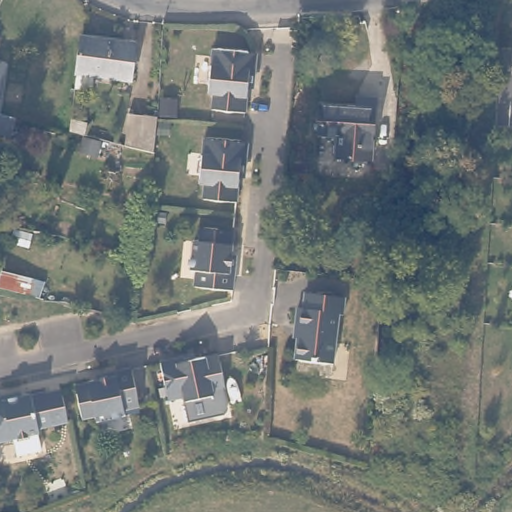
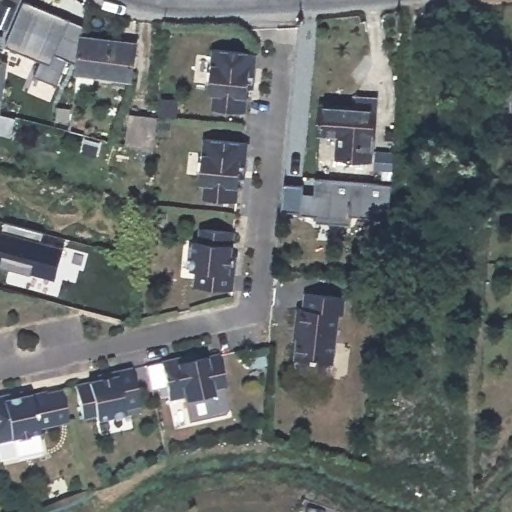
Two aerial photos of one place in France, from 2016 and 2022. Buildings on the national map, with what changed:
new [(81,35),(78,64),(67,59),(57,85),(34,75),(40,60),(4,46),(22,0),(83,24),(81,35)]
unchanged [(136,43),(132,81),(94,76),(92,90),(74,89),(81,35),(136,43)]
unchanged [(255,53),(252,80),(247,80),(244,113),(212,110),(214,94),(210,92),(214,49),(255,53)]
unchanged [(5,64),(0,109),(0,61),(5,64)]
unchanged [(377,97),(372,161),(335,160),(336,138),(316,136),(319,103),(356,105),(356,96),(377,97)]
unchanged [(17,118),(12,134),(0,131),(0,114),(5,115),(17,118)]
unchanged [(157,118),(154,152),(125,145),(128,114),(157,118)]
unchanged [(85,124),(83,134),(68,130),(70,120),(85,124)]
unchanged [(247,141),(244,169),(239,169),(236,201),(205,199),(206,182),(203,180),(207,138),(247,141)]
unchanged [(448,175),(442,215),(425,216),(425,207),(421,207),(421,202),(419,200),(420,175),(431,175),(432,172),(448,175)]
new [(392,181),(389,217),(352,214),(351,222),(317,221),(319,214),(315,214),(299,213),(279,212),(282,182),(301,184),(301,191),(313,192),(314,177),(392,181)]
unchanged [(476,239),(463,240),(461,220),(474,219),(476,239)]
unchanged [(414,221),(411,260),(397,259),(401,220),(414,221)]
unchanged [(233,231),(231,262),(236,264),(234,291),(198,287),(199,273),(194,273),(197,243),(201,244),(203,229),(233,231)]
unchanged [(383,246),(380,277),(369,275),(371,245),(383,246)]
unchanged [(12,250),(11,257),(5,256),(7,249),(12,250)]
unchanged [(37,297),(26,295),(0,287),(0,274),(1,270),(30,277),(41,280),(37,297)]
unchanged [(345,310),(341,310),(336,360),(297,356),(301,324),(297,324),(299,305),(305,305),(306,290),(346,293),(345,310)]
unchanged [(228,387),(215,390),(216,395),(189,402),(187,397),(172,400),(163,363),(189,357),(191,361),(219,355),(228,387)]
unchanged [(147,401),(131,406),(132,410),(104,418),(102,413),(91,416),(83,385),(112,377),(111,372),(139,365),(147,401)]
unchanged [(51,388),(65,385),(73,415),(44,421),(45,427),(41,428),(45,445),(22,450),(18,433),(0,438),(0,392),(19,387),(21,393),(50,386),(51,388)]

